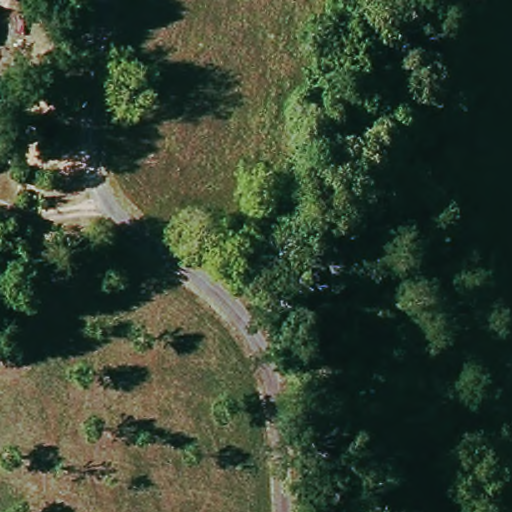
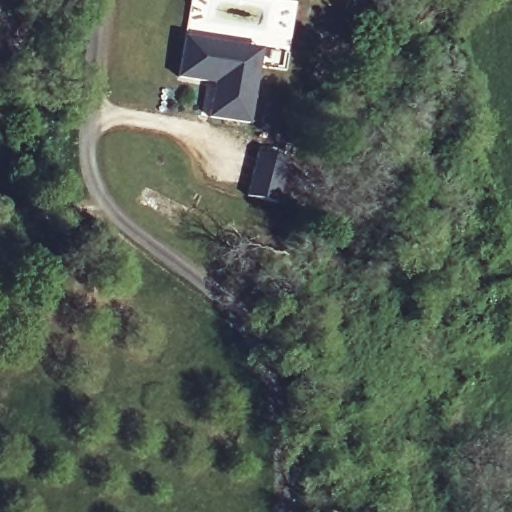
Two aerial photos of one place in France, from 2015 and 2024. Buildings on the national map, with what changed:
new [(263,46),(249,123),(208,116),(213,82),(178,77),(184,32),(263,46)]
new [(288,158),(276,205),(246,198),(256,149),(288,158)]

